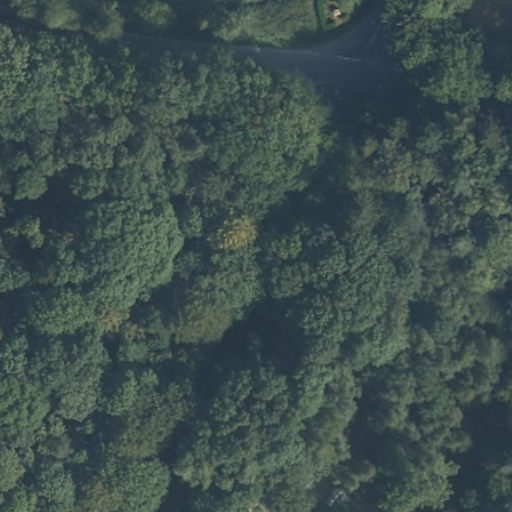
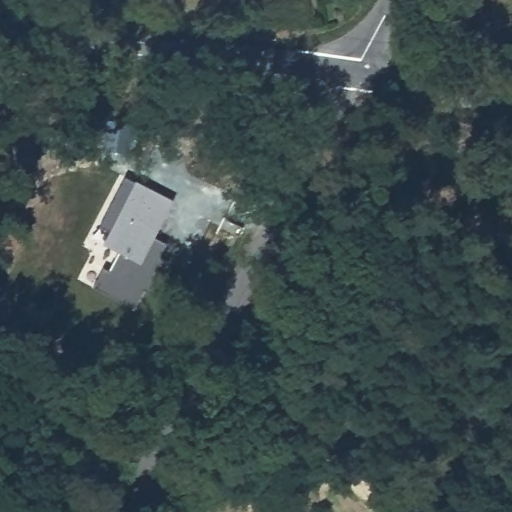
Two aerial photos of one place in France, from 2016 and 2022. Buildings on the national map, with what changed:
new [(102,267),(109,270),(117,251),(103,243),(109,230),(99,225),(124,177),(135,181),(135,180),(173,199),(155,237),(169,244),(162,257),(167,260),(151,292),(144,288),(134,307),(92,287),(102,267)]

